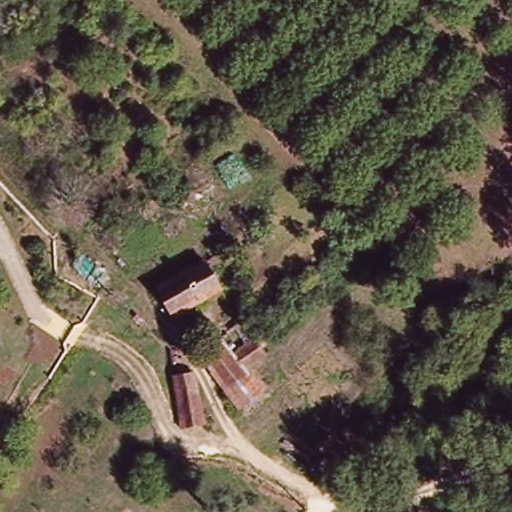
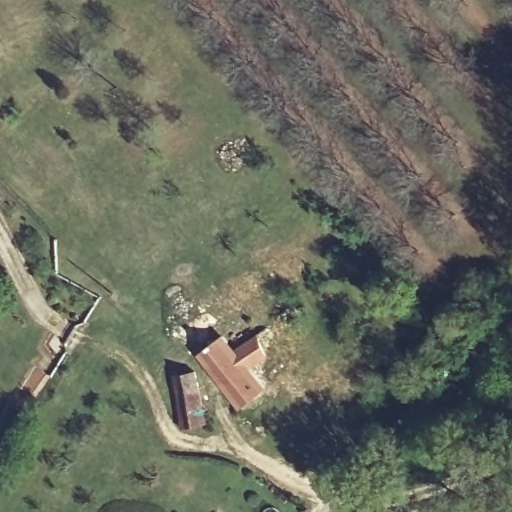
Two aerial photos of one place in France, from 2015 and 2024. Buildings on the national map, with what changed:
demolished [(220,285),(172,313),(154,285),(201,257),(220,285)]
unchanged [(265,348),(243,366),(261,386),(238,406),(194,350),(214,331),(231,351),(254,335),(265,348)]
unchanged [(171,366),(194,365),(203,424),(178,425),(171,366)]

